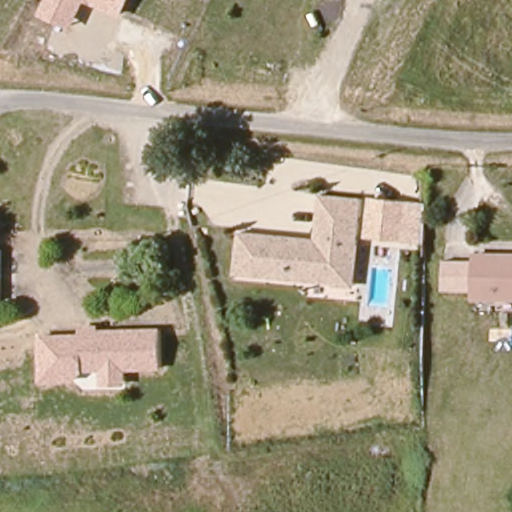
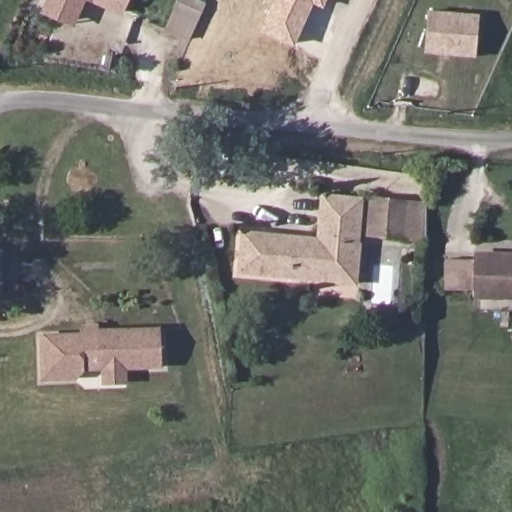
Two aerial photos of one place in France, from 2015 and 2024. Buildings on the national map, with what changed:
unchanged [(86,2),(75,27),(40,13),(46,0),(130,0),(122,16),(86,2)]
new [(323,8),(314,5),(295,46),(260,31),(274,0),(327,0),(323,8)]
new [(480,14),(475,58),(425,54),(430,9),(480,14)]
unchanged [(338,275),(244,275),(245,232),(318,233),(319,188),(360,189),(359,234),(358,276),(338,275)]
unchanged [(368,196),(425,202),(425,242),(366,236),(368,196)]
unchanged [(7,298),(0,298),(0,248),(9,248),(7,298)]
unchanged [(450,295),(451,266),(477,266),(477,261),(512,262),(512,303),(475,302),(475,296),(450,295)]
unchanged [(80,332),(80,322),(86,322),(83,365),(127,369),(127,384),(101,385),(101,371),(84,372),(76,381),(41,382),(40,333),(80,332)]
unchanged [(86,322),(164,328),(160,372),(127,369),(83,365),(86,322)]

